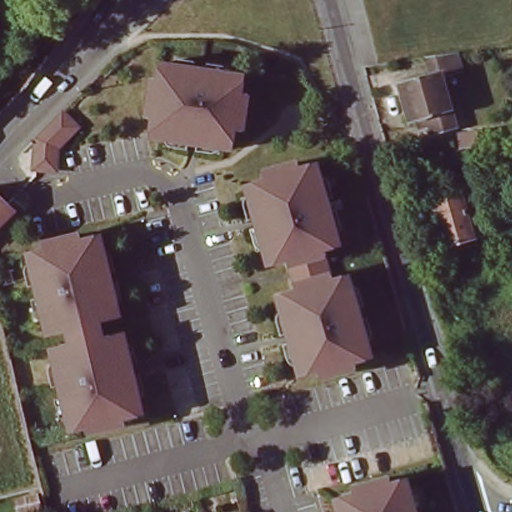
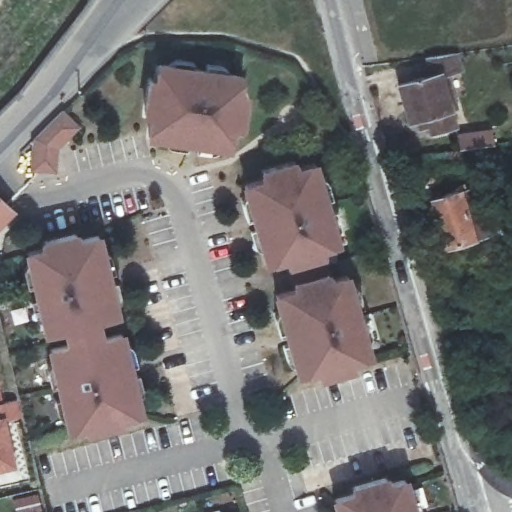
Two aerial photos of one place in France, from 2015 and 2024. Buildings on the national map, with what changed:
unchanged [(441,49),(454,47),(459,62),(442,67),(457,120),(432,129),(426,110),(410,115),(400,80),(433,69),(429,50),(441,49)]
unchanged [(157,104),(152,102),(162,71),(175,75),(180,60),(249,82),(244,97),(259,103),(249,134),(233,129),(226,149),(150,124),(157,104)]
unchanged [(40,169),(43,140),(68,116),(84,130),(64,150),(62,171),(40,169)]
unchanged [(460,135),(491,130),(492,145),(464,149),(461,150),(460,135)]
unchanged [(459,150),(461,169),(420,174),(417,155),(459,150)]
unchanged [(323,254),(329,270),(344,265),(367,333),(352,338),(355,350),(325,361),(323,356),(303,363),(278,288),(298,281),(292,265),(272,271),(246,195),(259,190),(261,190),(265,189),(263,183),(295,172),(299,185),(314,180),(315,180),(315,181),(338,249),(323,254)]
unchanged [(439,243),(425,197),(469,184),(484,237),(439,243)]
unchanged [(6,210),(10,214),(0,224),(0,204),(6,210)]
unchanged [(124,318),(104,323),(108,340),(130,333),(150,412),(129,419),(131,428),(95,436),(95,432),(75,437),(54,355),(68,348),(67,337),(51,340),(32,255),(48,254),(48,246),(82,234),(89,240),(105,239),(124,318)]
new [(3,404),(17,400),(22,416),(4,421),(15,467),(0,471),(0,389),(3,404)]
unchanged [(361,490),(393,480),(396,493),(413,489),(420,512),(347,512),(343,501),(363,495),(361,490)]

